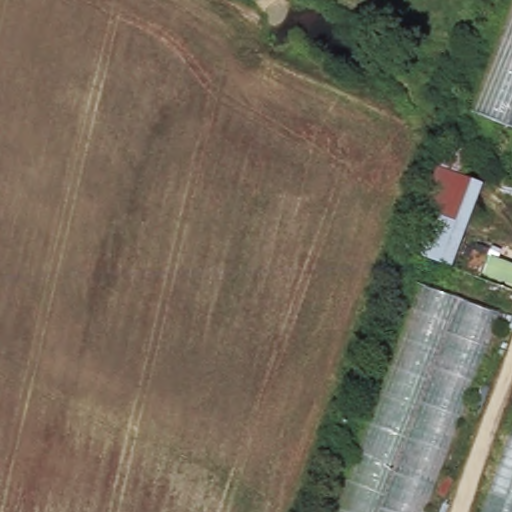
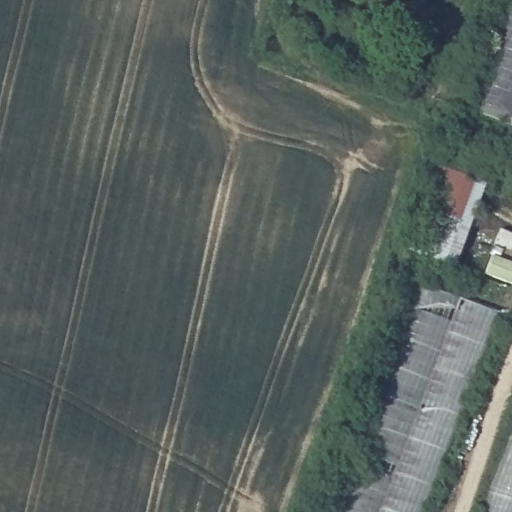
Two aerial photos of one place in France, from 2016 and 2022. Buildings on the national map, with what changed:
unchanged [(467,109),(512,0),(512,127),(467,109)]
unchanged [(470,139),(458,175),(469,180),(438,260),(408,249),(450,131),(470,139)]
unchanged [(424,275),(505,306),(426,512),(335,512),(424,275)]
unchanged [(512,435),(512,512),(483,512),(512,435)]

